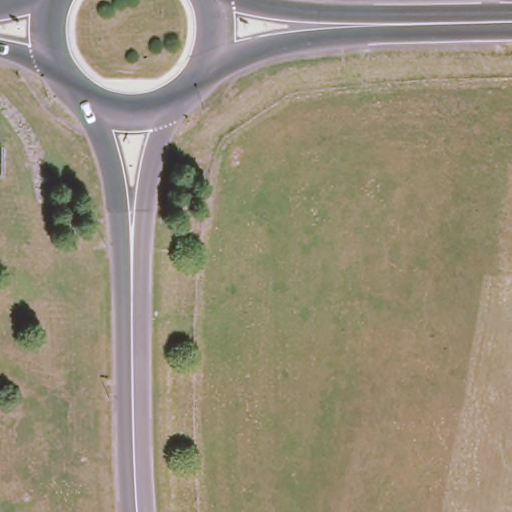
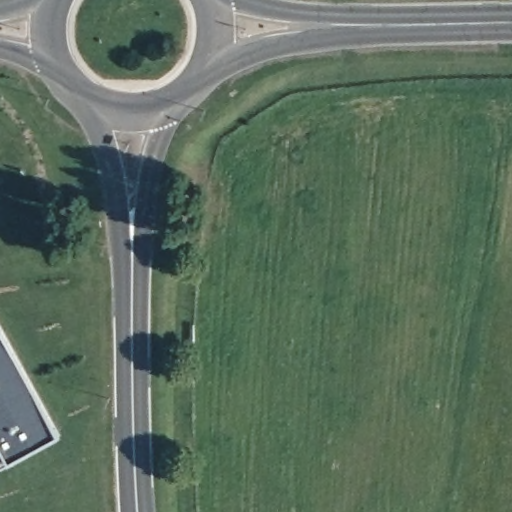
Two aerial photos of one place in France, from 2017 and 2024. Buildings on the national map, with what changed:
new [(60,431),(12,457),(3,442),(0,444),(0,317),(60,431)]

